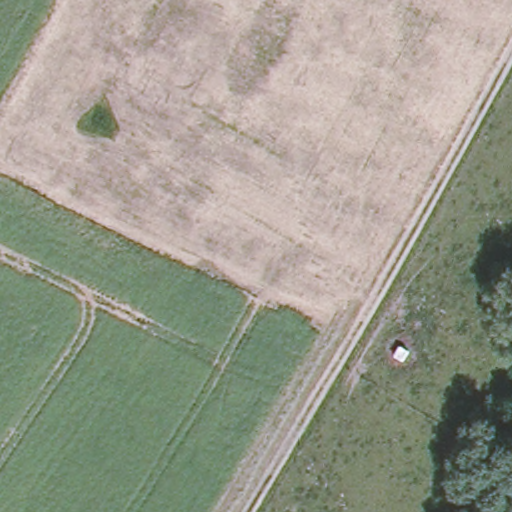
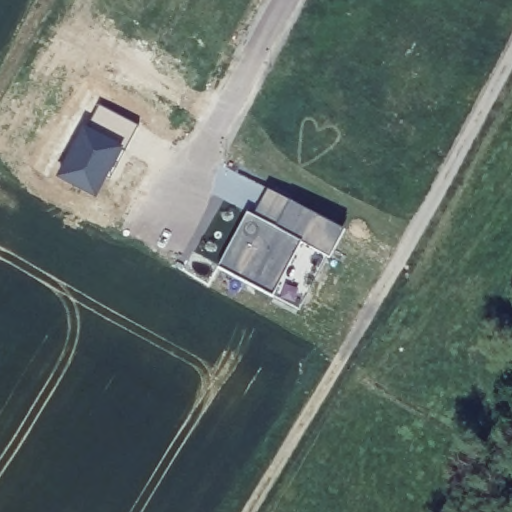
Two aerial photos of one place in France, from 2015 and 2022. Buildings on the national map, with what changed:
new [(97,104),(137,126),(110,180),(105,177),(95,195),(56,176),(97,104)]
new [(347,231),(330,258),(301,241),(272,297),(217,267),(247,211),(255,215),(268,190),(347,231)]

